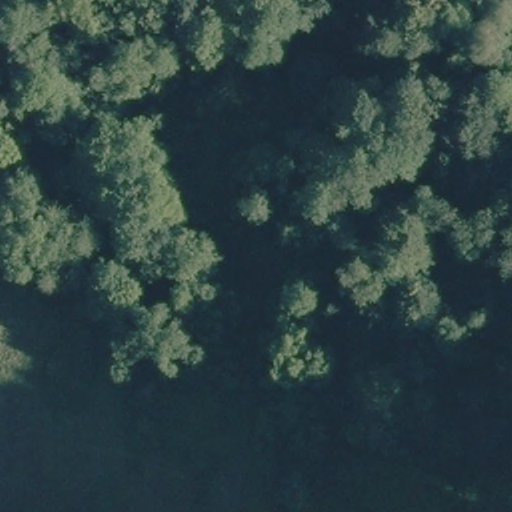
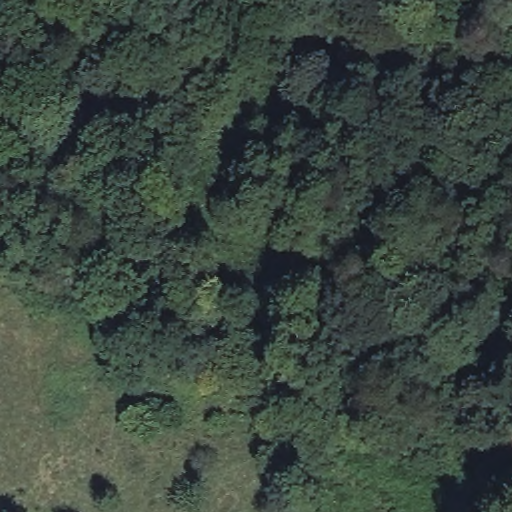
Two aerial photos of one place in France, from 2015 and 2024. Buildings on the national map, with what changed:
unchanged [(150,282),(150,288),(158,289),(158,299),(147,299),(147,313),(132,312),(104,309),(106,280),(150,282)]
unchanged [(209,389),(175,384),(182,310),(217,312),(209,389)]

